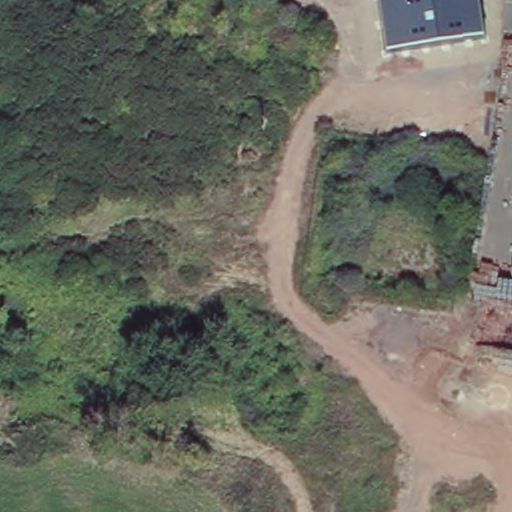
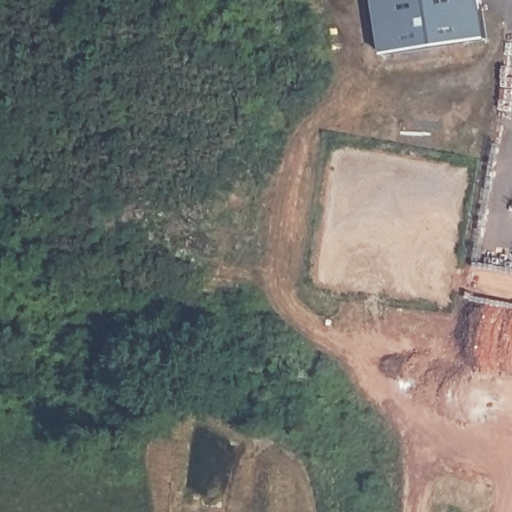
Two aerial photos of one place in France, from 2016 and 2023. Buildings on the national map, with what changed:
unchanged [(375,0),(481,0),(488,40),(384,56),(375,0)]

